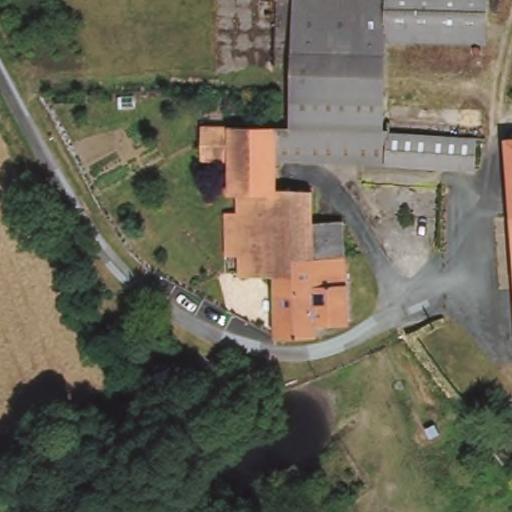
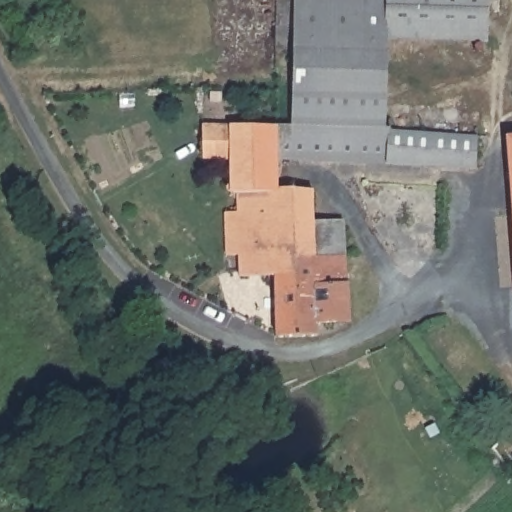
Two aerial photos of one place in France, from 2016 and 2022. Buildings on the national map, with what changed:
unchanged [(390,0),(388,38),(387,56),(300,52),(302,0),(390,0)]
unchanged [(388,38),(390,0),(492,0),(490,44),(388,38)]
unchanged [(300,52),(387,56),(386,99),(298,94),(300,52)]
unchanged [(298,94),(386,99),(385,132),(297,127),(298,94)]
unchanged [(242,126),(281,127),(283,161),(284,192),(240,192),(236,192),(235,160),(207,160),(206,126),(234,126),(237,126),(242,126)]
unchanged [(297,127),(385,132),(395,132),(395,135),(483,140),(481,169),(283,161),(281,127),(297,127)]
unchanged [(512,135),(512,167),(509,135),(512,135)]
unchanged [(323,323),(323,337),(284,337),(281,276),(247,277),(246,255),(232,254),(231,212),(240,212),(240,192),(284,192),(320,192),(320,196),(321,222),(321,227),(351,224),(351,257),(353,321),(323,323)]

